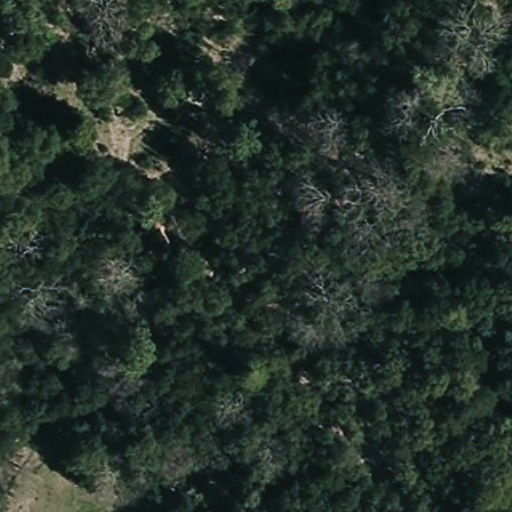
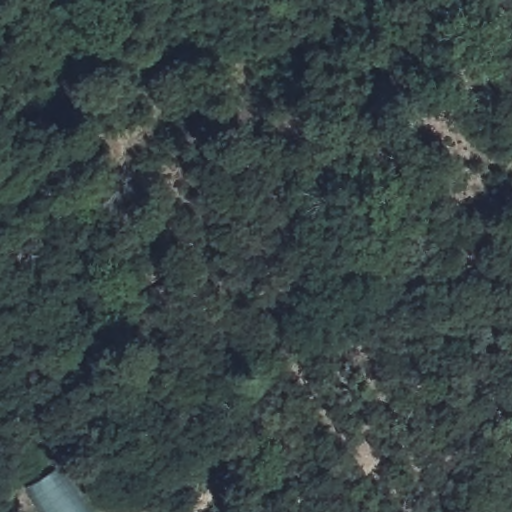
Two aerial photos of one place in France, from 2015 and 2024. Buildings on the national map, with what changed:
new [(87,512),(44,512),(30,489),(61,469),(87,512)]

